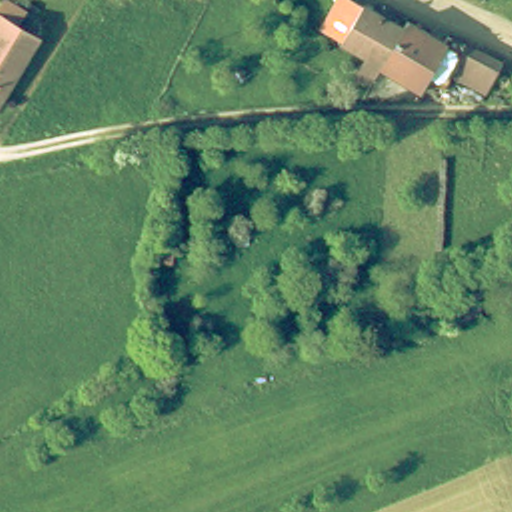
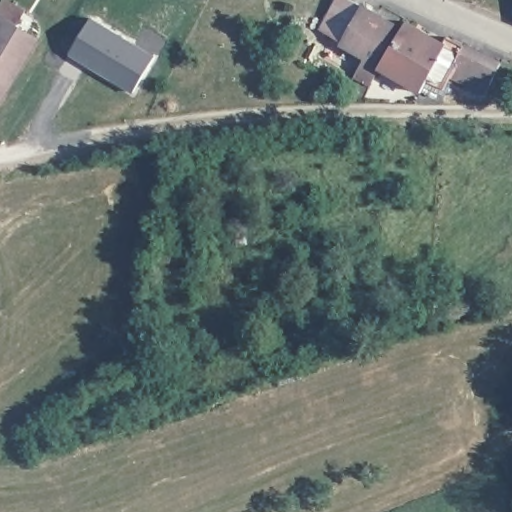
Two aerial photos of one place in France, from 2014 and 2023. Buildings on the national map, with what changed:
unchanged [(370,58),(324,32),(341,0),(359,0),(410,27),(390,69),(382,84),(361,75),(370,58)]
unchanged [(2,12),(42,38),(0,103),(0,16),(2,12)]
new [(155,56),(133,93),(70,54),(92,17),(155,56)]
unchanged [(410,27),(413,21),(452,44),(435,83),(431,92),(390,69),(410,27)]
unchanged [(470,39),(472,36),(507,56),(505,62),(492,92),(460,77),(452,91),(435,83),(452,44),(457,31),(470,39)]

